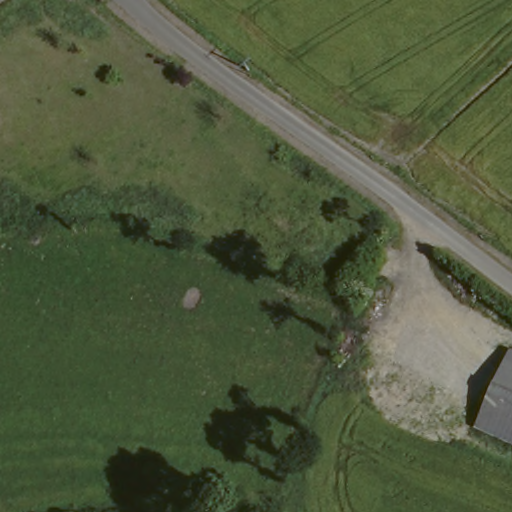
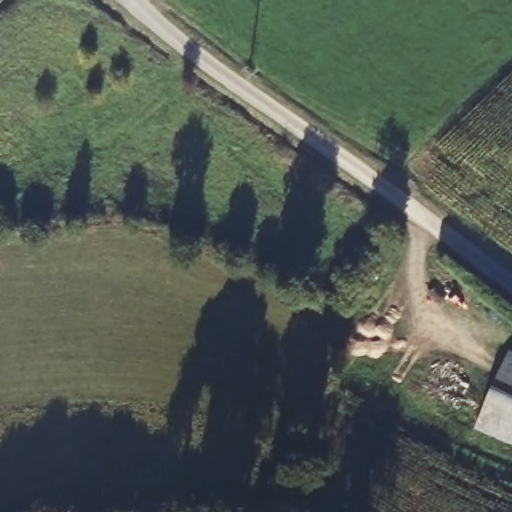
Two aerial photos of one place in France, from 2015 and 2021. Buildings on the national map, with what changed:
unchanged [(512,367),(512,446),(483,434),(512,367)]

